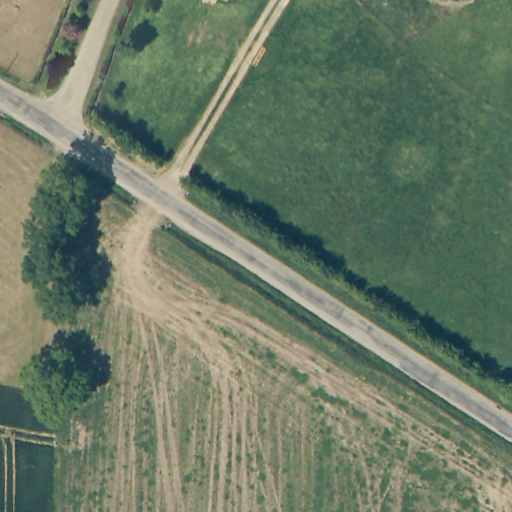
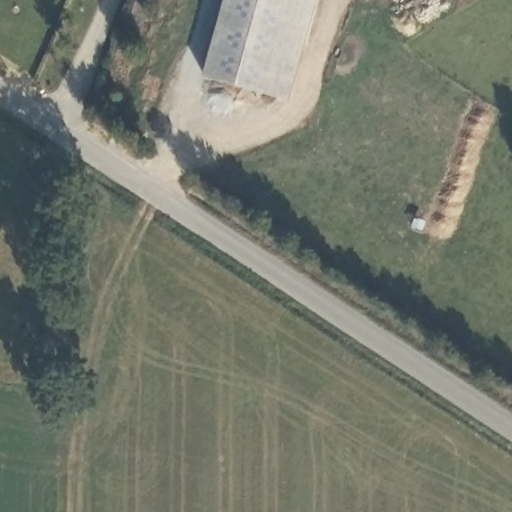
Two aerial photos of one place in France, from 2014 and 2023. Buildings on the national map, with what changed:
new [(290,102),(202,76),(223,0),(318,0),(290,102)]

